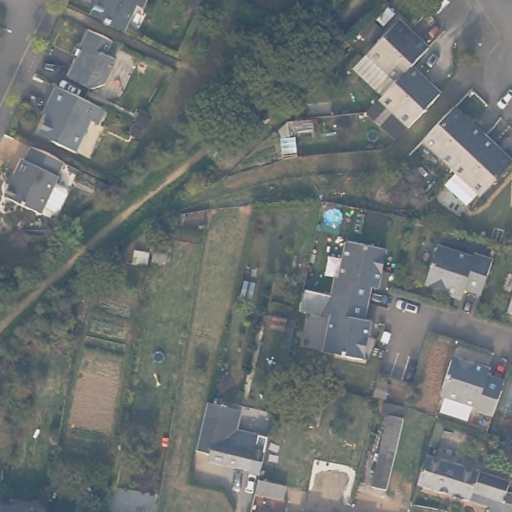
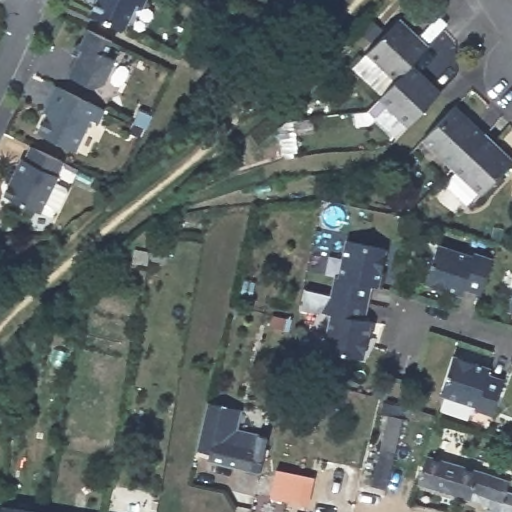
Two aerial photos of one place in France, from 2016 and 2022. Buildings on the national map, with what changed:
unchanged [(90,8),(93,0),(133,0),(122,23),(90,8)]
unchanged [(138,0),(139,0),(139,1),(138,0)]
unchanged [(187,1),(188,0),(207,0),(203,9),(187,1)]
unchanged [(411,61),(397,76),(368,49),(400,16),(428,43),(411,61)]
unchanged [(105,54),(114,60),(102,84),(91,86),(67,75),(76,56),(70,54),(75,43),(80,42),(87,29),(111,41),(105,54)]
unchanged [(408,121),(378,94),(397,76),(411,61),(440,90),(408,121)]
unchanged [(97,124),(88,120),(72,151),(36,134),(50,104),(45,101),(53,85),(102,109),(97,124)]
unchanged [(456,164),(428,137),(460,104),(488,131),(456,164)]
unchanged [(512,164),(485,193),(456,164),(488,131),(512,154),(512,164)]
unchanged [(56,176),(59,177),(41,214),(2,197),(20,156),(23,158),(29,145),(62,161),(56,176)]
unchanged [(382,287),(378,286),(371,284),(367,301),(333,294),(337,276),(340,277),(347,241),(386,248),(381,271),(386,272),(382,287)]
unchanged [(441,294),(442,289),(421,282),(433,245),(469,257),(470,254),(487,260),(476,293),(460,288),(457,294),(456,299),(441,294)]
unchanged [(168,249),(166,262),(153,259),(155,247),(168,249)]
unchanged [(372,336),(367,335),(363,357),(325,349),(332,313),(301,306),(301,304),(303,291),(304,288),(333,294),(367,301),(364,319),(371,320),(376,321),(372,336)]
unchanged [(512,299),(512,311),(508,310),(512,299)]
unchanged [(475,365),(476,360),(491,365),(489,369),(487,376),(503,381),(492,415),(475,409),(476,406),(441,394),(453,357),(475,365)]
unchanged [(325,400),(319,426),(307,423),(313,397),(325,400)]
unchanged [(240,404),(236,424),(267,430),(258,466),(206,457),(207,449),(194,446),(206,399),(240,404)]
unchanged [(398,443),(388,488),(387,490),(373,487),(389,416),(387,416),(377,414),(381,402),(400,406),(402,407),(400,418),(404,419),(398,443)]
unchanged [(493,476),(510,481),(507,488),(512,489),(512,512),(504,510),(503,512),(497,512),(486,508),(486,503),(417,483),(427,454),(478,470),(493,476)]
unchanged [(285,480),(281,495),(254,488),(257,474),(285,480)]
unchanged [(30,512),(0,512),(0,507),(30,512)]

